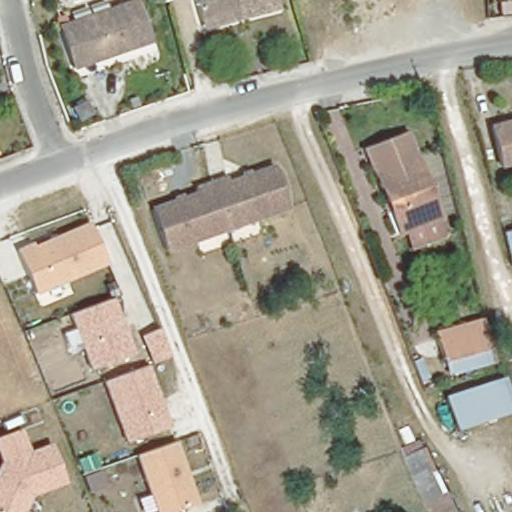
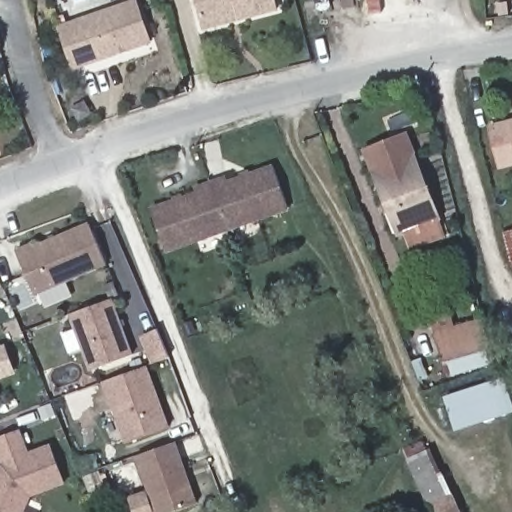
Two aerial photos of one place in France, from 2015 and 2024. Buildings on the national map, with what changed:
unchanged [(196,0),(276,0),(278,13),(239,22),(203,31),(201,24),(196,0)]
unchanged [(155,42),(79,70),(64,29),(140,1),(155,42)]
unchanged [(512,121),(512,164),(501,166),(491,126),(512,121)]
unchanged [(413,247),(407,232),(399,234),(375,170),(367,149),(407,134),(414,154),(439,219),(437,219),(443,234),(413,247)]
unchanged [(228,179),(230,184),(275,168),(289,208),(228,229),(212,184),(228,179)]
unchanged [(198,194),(196,189),(212,184),(228,229),(166,250),(152,210),(198,194)]
unchanged [(35,295),(15,249),(34,242),(36,245),(89,223),(107,265),(35,295)]
unchanged [(503,232),(503,231),(512,229),(512,263),(511,264),(503,232)]
unchanged [(135,356),(89,373),(67,315),(112,299),(135,356)]
unchanged [(446,377),(442,361),(435,332),(484,320),(489,342),(491,349),(495,364),(446,377)]
new [(0,380),(0,346),(5,344),(15,375),(0,380)]
unchanged [(170,428),(126,444),(102,381),(146,364),(170,428)]
unchanged [(508,409),(509,411),(453,428),(443,397),(500,380),(508,409)]
unchanged [(66,484),(31,495),(24,512),(0,512),(0,436),(21,428),(30,452),(50,444),(66,484)]
unchanged [(197,504),(176,512),(154,512),(134,455),(175,439),(197,504)]
unchanged [(405,451),(404,449),(405,449),(423,440),(427,450),(428,449),(448,495),(451,494),(460,512),(433,512),(409,459),(405,451)]

